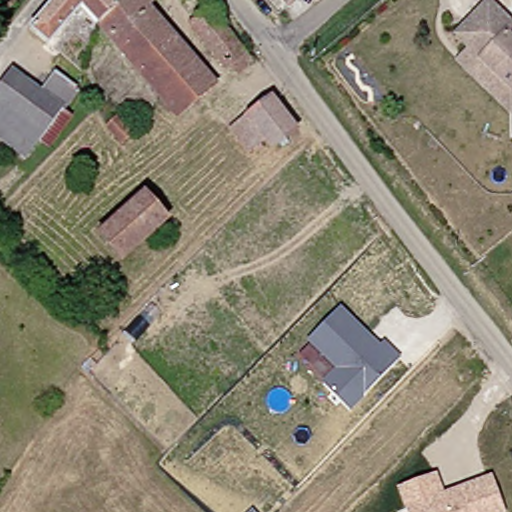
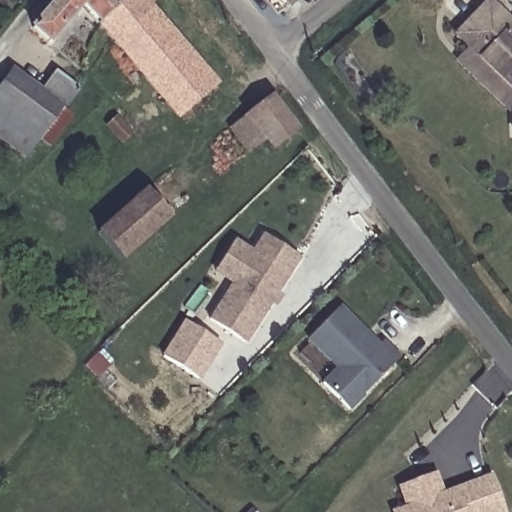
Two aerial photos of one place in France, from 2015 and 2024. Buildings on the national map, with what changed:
unchanged [(37,22),(53,0),(80,0),(53,34),(37,22)]
unchanged [(100,15),(87,0),(118,0),(100,15)]
unchanged [(118,0),(153,0),(151,4),(217,84),(182,114),(117,36),(100,15),(118,0)]
demolished [(213,0),(216,0),(224,11),(222,13),(258,56),(244,68),(235,58),(231,61),(194,15),(213,0)]
unchanged [(288,1),(287,0),(290,0),(288,1)]
unchanged [(478,57),(488,47),(463,22),(485,0),(486,0),(510,24),(504,31),(512,39),(512,131),(510,131),(510,114),(510,89),(478,57)]
unchanged [(455,59),(468,47),(453,32),(463,22),(488,47),(478,57),(510,89),(510,114),(455,59)]
unchanged [(34,80),(4,119),(0,116),(0,89),(17,67),(34,80)]
unchanged [(81,85),(79,87),(66,104),(63,102),(28,150),(0,129),(0,116),(4,119),(34,80),(45,88),(60,68),(81,85)]
unchanged [(268,145),(244,114),(270,95),(294,125),(268,145)]
unchanged [(137,135),(129,142),(115,126),(123,119),(137,135)]
unchanged [(145,186),(172,214),(126,257),(100,229),(145,186)]
new [(207,320),(229,285),(213,275),(234,240),(252,250),(261,234),(300,257),(278,294),(282,297),(276,308),(272,305),(247,343),(207,320)]
unchanged [(350,411),(322,383),(335,370),(308,341),(342,306),(381,344),(387,339),(402,355),(350,411)]
new [(189,319),(223,341),(201,376),(166,353),(189,319)]
unchanged [(439,474),(446,492),(493,475),(506,512),(408,512),(399,487),(439,474)]

